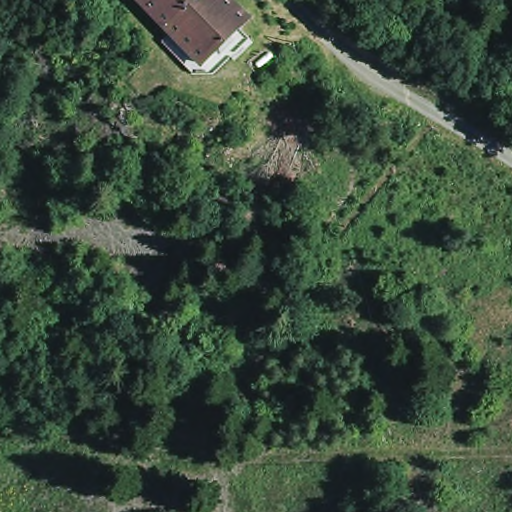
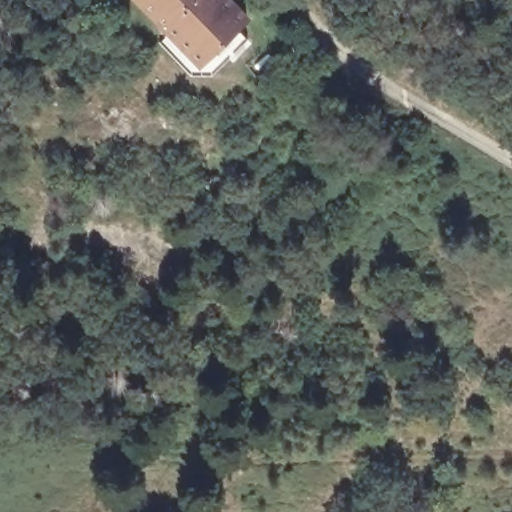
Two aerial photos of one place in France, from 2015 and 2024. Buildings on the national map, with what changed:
unchanged [(215,64),(143,0),(233,0),(255,19),(215,64)]

